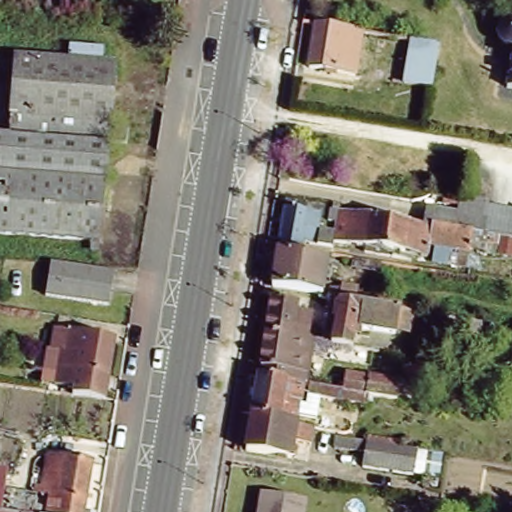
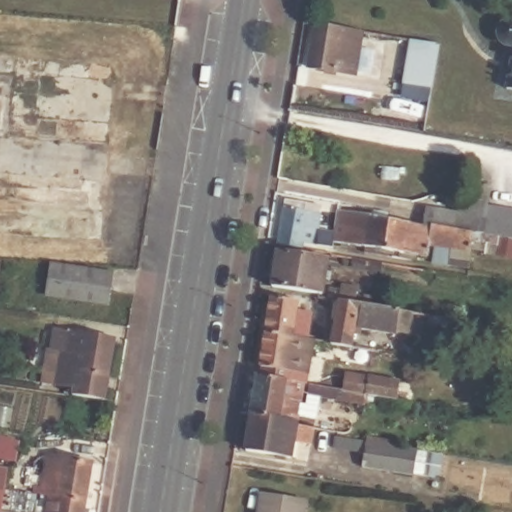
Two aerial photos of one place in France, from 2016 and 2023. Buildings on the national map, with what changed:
unchanged [(500,39),(499,30),(507,20),(512,21),(512,46),(506,45),(500,39)]
unchanged [(366,34),(359,77),(320,70),(327,27),(366,34)]
unchanged [(440,44),(440,46),(432,86),(403,81),(410,38),(440,44)]
demolished [(15,74),(16,57),(116,65),(112,124),(130,125),(127,143),(110,141),(105,204),(0,196),(0,73),(15,74)]
unchanged [(512,62),(512,88),(507,88),(512,62)]
demolished [(102,241),(0,233),(0,196),(105,204),(102,241)]
unchanged [(483,252),(468,249),(468,252),(427,245),(425,257),(403,254),(408,223),(430,227),(430,224),(455,228),(458,209),(460,197),(487,201),(486,208),(512,211),(512,238),(496,235),(495,245),(485,243),(483,252)]
unchanged [(328,207),(322,241),(318,241),(317,245),(281,239),(287,200),(328,207)]
unchanged [(391,251),(390,257),(363,252),(364,247),(333,241),(338,210),(373,216),(373,217),(408,223),(403,254),(391,251)]
unchanged [(277,249),(327,260),(321,295),(271,287),(277,249)]
unchanged [(110,272),(105,303),(46,294),(52,262),(110,272)]
unchanged [(307,372),(304,392),(303,397),(298,395),(286,393),(253,387),(260,344),(266,309),(268,294),(300,300),(299,309),(314,314),(307,342),(315,341),(307,372)]
unchanged [(332,298),(395,308),(413,314),(412,335),(395,335),(353,330),(351,348),(328,343),(332,298)]
new [(430,314),(483,323),(481,334),(428,326),(430,314)]
unchanged [(57,323),(116,332),(105,395),(58,387),(43,385),(50,345),(53,345),(57,323)]
unchanged [(422,373),(425,360),(439,362),(437,375),(422,373)]
unchanged [(342,377),(344,370),(396,378),(394,399),(366,394),(365,405),(304,392),(307,372),(342,377)]
unchanged [(247,424),(253,387),(286,393),(298,395),(292,432),(247,424)]
unchanged [(292,432),(291,439),(290,441),(306,443),(303,463),(287,460),(286,469),(240,461),(247,424),(292,432)]
unchanged [(411,477),(383,472),(363,469),(367,444),(387,448),(415,452),(411,477)]
unchanged [(50,503),(50,497),(40,495),(41,490),(29,488),(31,474),(44,476),(47,456),(92,463),(85,512),(3,512),(0,512),(0,495),(50,503)]
unchanged [(13,468),(10,496),(0,495),(0,465),(13,468)]
unchanged [(299,512),(257,512),(261,489),(301,496),(299,512)]

